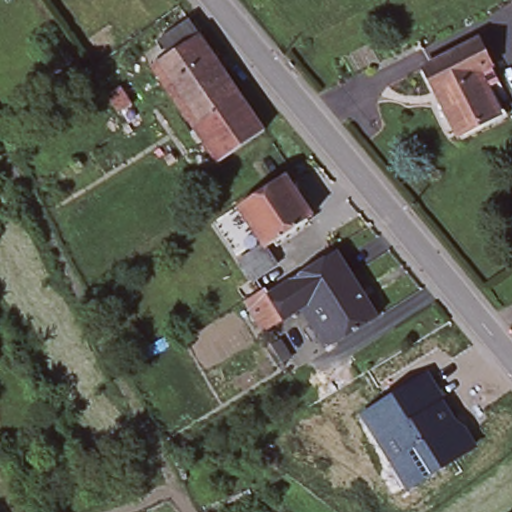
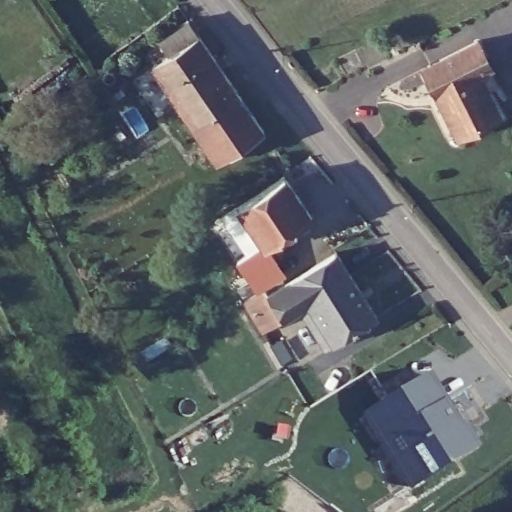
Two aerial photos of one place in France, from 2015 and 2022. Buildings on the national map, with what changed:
unchanged [(169,56),(159,41),(185,24),(195,39),(224,81),(178,111),(150,70),(169,56)]
unchanged [(497,80),(485,86),(498,112),(456,131),(424,65),(478,39),(488,61),(497,80)]
unchanged [(224,81),(237,100),(191,130),(178,111),(224,81)]
unchanged [(238,101),(261,135),(214,165),(192,132),(238,101)]
unchanged [(333,249),(349,275),(306,301),(279,318),(260,330),(240,298),(234,288),(248,279),(235,258),(260,242),(235,206),(280,174),(309,214),(264,246),(275,262),(253,276),(260,287),(262,285),(266,292),(333,249)]
unchanged [(306,301),(349,275),(373,315),(330,341),(322,346),(308,323),(316,317),(306,301)]
unchanged [(474,447),(409,491),(361,416),(425,376),(474,447)]

